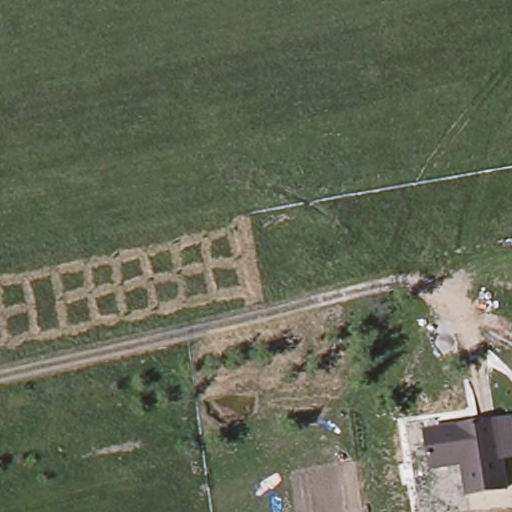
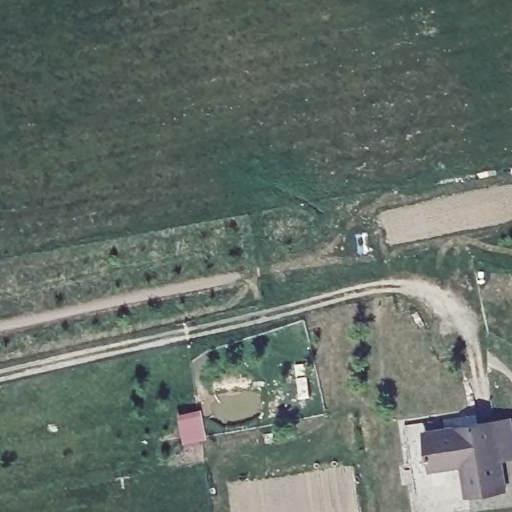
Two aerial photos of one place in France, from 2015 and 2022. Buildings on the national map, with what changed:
unchanged [(512,412),(512,454),(500,457),(493,416),(512,412)]
unchanged [(428,457),(423,428),(493,416),(504,484),(467,491),(462,461),(430,467),(428,457)]

